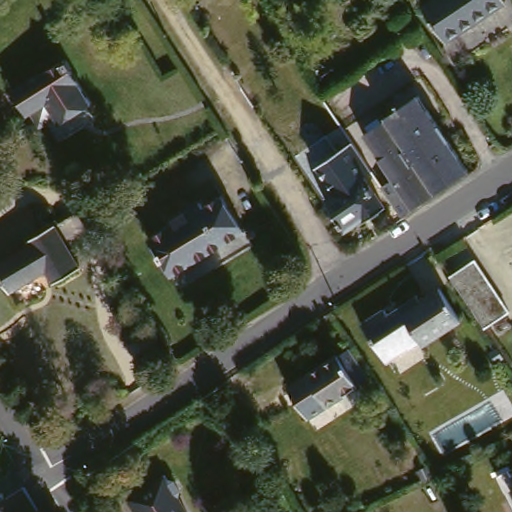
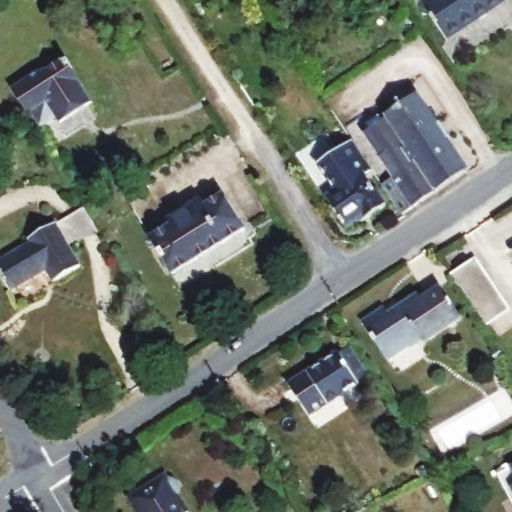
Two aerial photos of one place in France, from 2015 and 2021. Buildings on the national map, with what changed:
unchanged [(423,10),(437,0),(504,0),(505,2),(446,43),(423,10)]
unchanged [(61,125),(58,119),(41,130),(34,117),(32,115),(29,117),(14,92),(41,75),(42,77),(65,62),(66,62),(68,61),(74,70),(72,71),(82,87),(93,105),(61,125)]
unchanged [(470,171),(403,217),(383,188),(393,181),(373,154),(375,152),(364,137),(384,123),(382,121),(418,96),(470,171)]
unchanged [(385,209),(362,225),(360,222),(346,232),(326,202),(363,177),(385,209)]
unchanged [(245,231),(170,275),(147,235),(167,222),(165,220),(200,199),(203,203),(222,192),(245,231)]
unchanged [(87,215),(99,234),(70,251),(79,268),(53,283),(45,267),(8,289),(0,276),(0,261),(30,242),(29,239),(82,207),(86,214),(87,215)]
unchanged [(510,308),(485,325),(452,273),(477,257),(510,308)]
unchanged [(462,312),(425,337),(422,333),(410,341),(410,340),(389,353),(376,335),(375,335),(363,317),(386,301),(390,307),(418,287),(422,292),(441,280),(462,312)]
unchanged [(296,383),(303,378),(345,351),(364,382),(333,402),(322,408),(316,412),(296,383)]
unchanged [(512,462),(512,484),(502,467),(512,462)]
unchanged [(173,484),(179,494),(177,500),(185,512),(134,512),(127,502),(165,478),(167,482),(173,484)]

